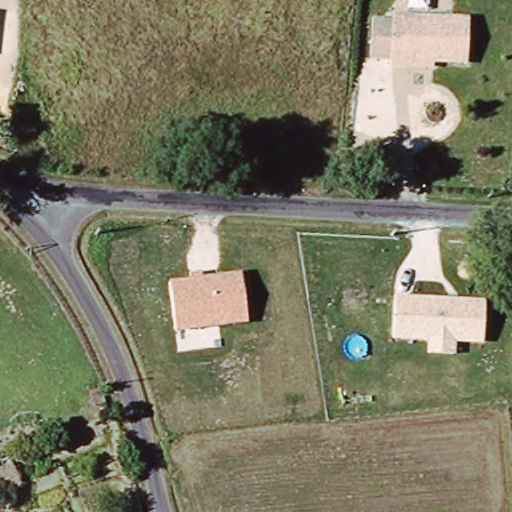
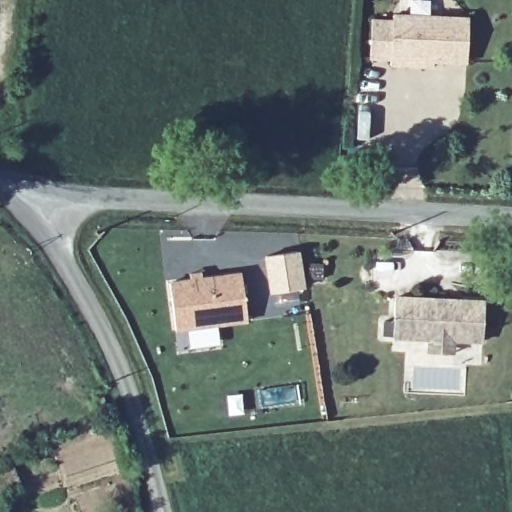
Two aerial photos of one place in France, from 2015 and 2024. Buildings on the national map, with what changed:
unchanged [(410,63),(393,62),(396,13),(472,18),(470,61),(435,59),(435,64),(410,63)]
new [(297,251),(302,288),(271,292),(266,256),(297,251)]
unchanged [(240,272),(246,323),(175,331),(170,281),(189,279),(188,273),(201,272),(201,276),(240,272)]
unchanged [(484,299),(483,343),(456,342),(455,356),(425,354),(426,340),(392,339),(393,296),(484,299)]

